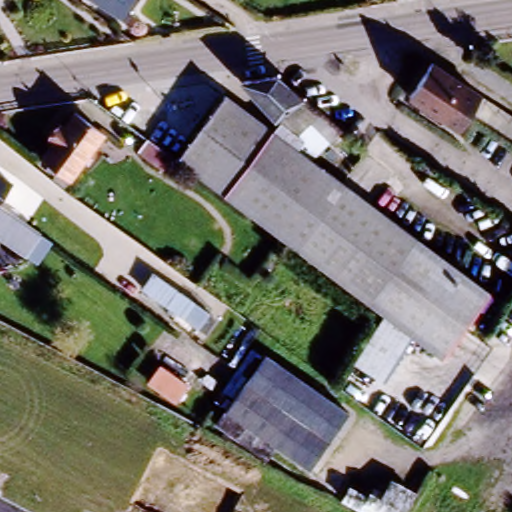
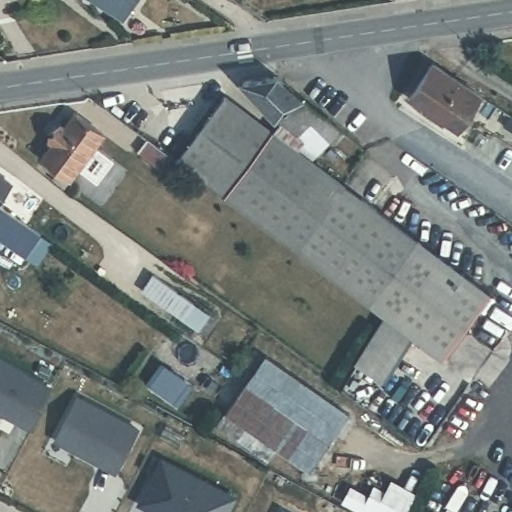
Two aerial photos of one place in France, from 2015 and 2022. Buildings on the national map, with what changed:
unchanged [(119,26),(83,2),(84,0),(136,0),(119,26)]
unchanged [(480,95),(460,128),(428,109),(410,96),(416,85),(426,71),(431,64),(480,95)]
unchanged [(277,123),(232,86),(254,76),(275,80),(343,134),(317,159),(277,123)]
unchanged [(317,159),(308,165),(423,257),(380,315),(169,160),(219,97),(269,134),(277,123),(317,159)]
unchanged [(51,170),(41,164),(44,159),(36,155),(46,139),(42,136),(47,129),(54,120),(58,124),(69,109),(97,130),(66,176),(60,183),(47,175),(51,170)]
unchanged [(145,139),(146,141),(167,157),(159,169),(133,151),(142,138),(145,139)]
unchanged [(0,206),(0,174),(20,186),(0,206)]
unchanged [(37,265),(26,257),(25,258),(0,240),(0,207),(52,243),(37,265)]
unchanged [(417,237),(490,292),(441,360),(380,315),(423,257),(410,247),(417,237)]
unchanged [(197,302),(178,327),(129,292),(147,270),(197,302)]
unchanged [(273,450),(265,465),(205,423),(257,350),(355,418),(307,478),(273,450)]
new [(31,428),(0,413),(0,359),(53,386),(31,428)]
new [(78,400),(137,431),(116,473),(101,466),(102,463),(57,440),(78,400)]
new [(159,479),(169,461),(171,463),(238,498),(231,512),(158,512),(145,505),(159,479)]

